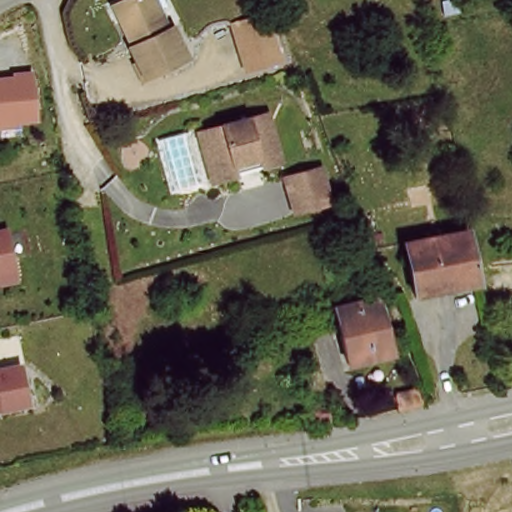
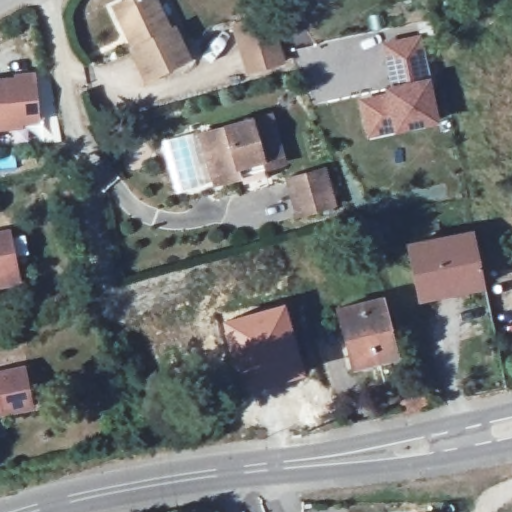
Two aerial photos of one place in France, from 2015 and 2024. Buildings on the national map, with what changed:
unchanged [(133,22),(127,4),(135,0),(155,0),(162,14),(168,10),(192,64),(150,84),(133,53),(143,49),(140,41),(132,44),(125,25),(133,22)]
new [(231,25),(270,15),(285,64),(247,75),(231,25)]
new [(393,133),(367,140),(358,100),(385,95),(385,89),(392,87),(382,44),(420,35),(430,78),(439,124),(393,133)]
unchanged [(8,70),(32,70),(35,125),(0,126),(0,77),(9,76),(8,70)]
unchanged [(236,172),(212,178),(199,128),(267,111),(280,159),(259,164),(260,166),(236,172)]
unchanged [(295,219),(287,185),(323,176),(332,209),(295,219)]
unchanged [(15,285),(0,288),(0,228),(5,227),(15,285)]
unchanged [(480,282),(417,295),(407,240),(470,230),(480,282)]
demolished [(512,263),(512,286),(498,287),(497,264),(512,263)]
new [(284,302),(305,372),(242,391),(233,372),(220,320),(284,302)]
unchanged [(396,361),(352,372),(337,316),(382,302),(396,361)]
unchanged [(0,415),(0,368),(23,365),(33,409),(0,415)]
unchanged [(332,390),(339,416),(317,421),(312,421),(305,397),(332,390)]

